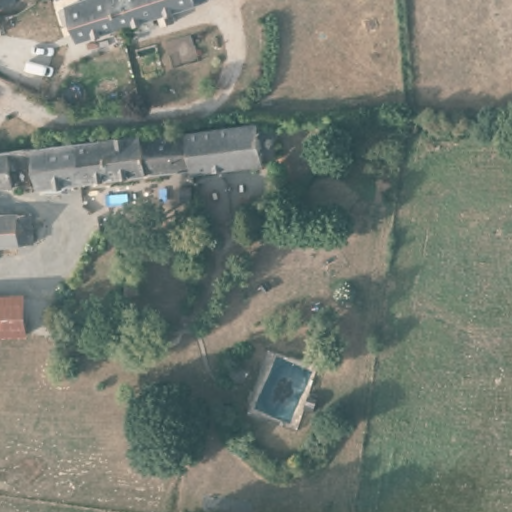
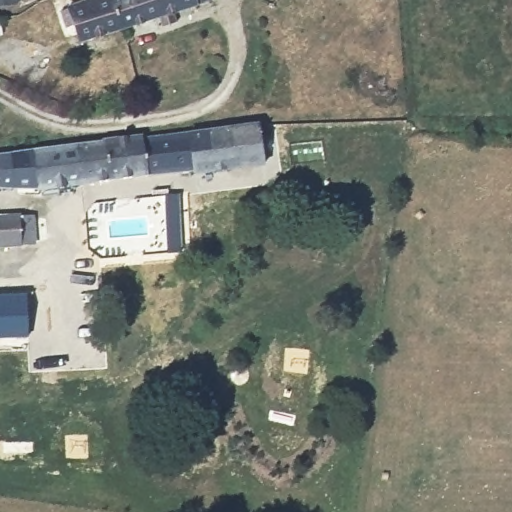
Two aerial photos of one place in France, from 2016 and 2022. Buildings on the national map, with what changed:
unchanged [(0,6),(0,0),(18,0),(17,4),(0,6)]
unchanged [(118,22),(81,34),(75,16),(67,20),(61,4),(69,1),(69,0),(187,0),(162,8),(165,17),(151,21),(148,13),(143,14),(145,23),(121,31),(118,22)]
unchanged [(143,136),(259,123),(264,160),(197,170),(196,165),(42,185),(36,163),(15,166),(16,185),(0,184),(0,149),(142,131),(143,136)]
unchanged [(33,217),(34,245),(0,246),(0,218),(33,217)]
unchanged [(27,297),(29,337),(0,337),(0,298),(27,297)]

